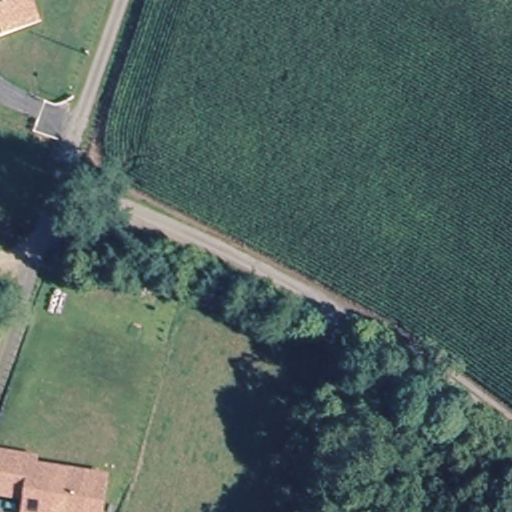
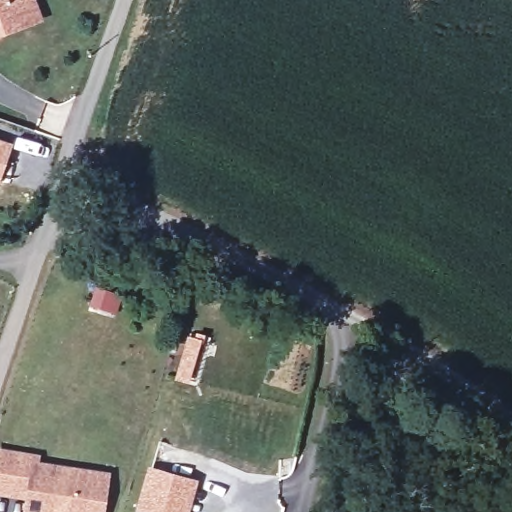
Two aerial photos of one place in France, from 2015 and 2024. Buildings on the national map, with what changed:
demolished [(34,9),(17,11),(21,31),(0,35),(0,0),(32,0),(34,9)]
new [(43,20),(0,38),(0,0),(35,0),(43,20)]
new [(0,139),(13,144),(0,178),(0,139)]
unchanged [(110,474),(105,512),(23,512),(25,499),(0,495),(0,448),(40,455),(39,463),(110,474)]
new [(199,480),(190,512),(134,512),(148,467),(199,480)]

